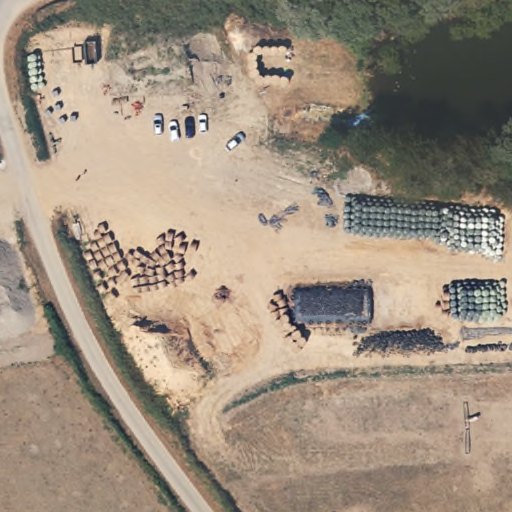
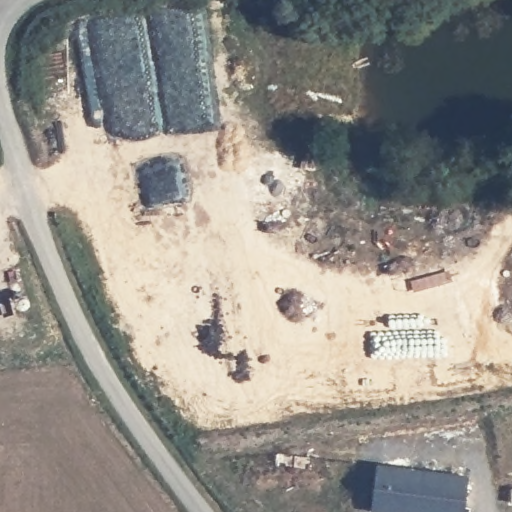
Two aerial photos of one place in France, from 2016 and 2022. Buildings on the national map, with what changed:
new [(468,476),(464,512),(370,512),(376,464),(468,476)]

